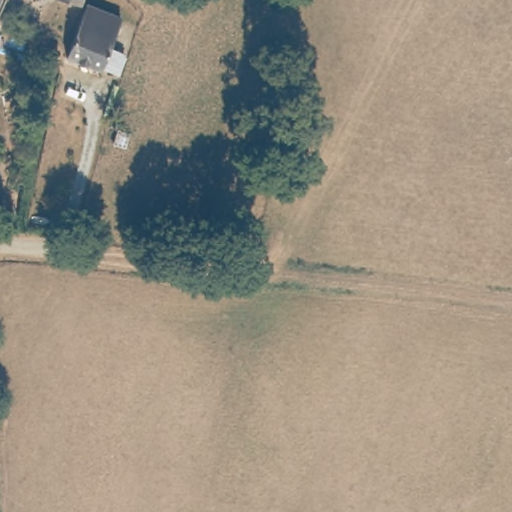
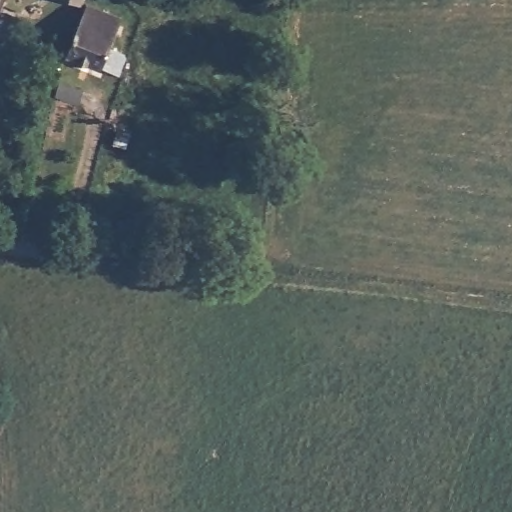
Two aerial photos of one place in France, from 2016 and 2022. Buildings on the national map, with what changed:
unchanged [(61,0),(82,0),(80,6),(61,0)]
unchanged [(65,51),(86,4),(118,18),(99,66),(65,51)]

